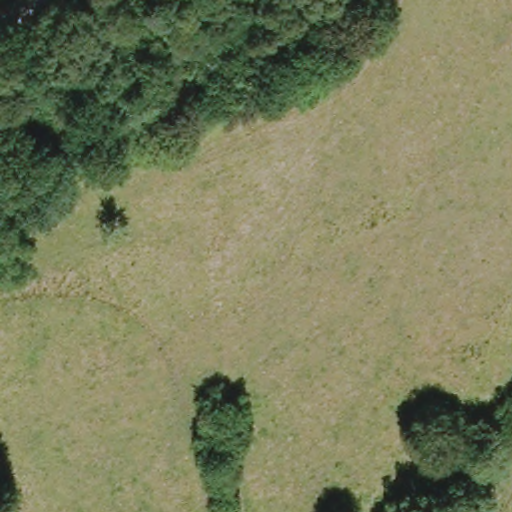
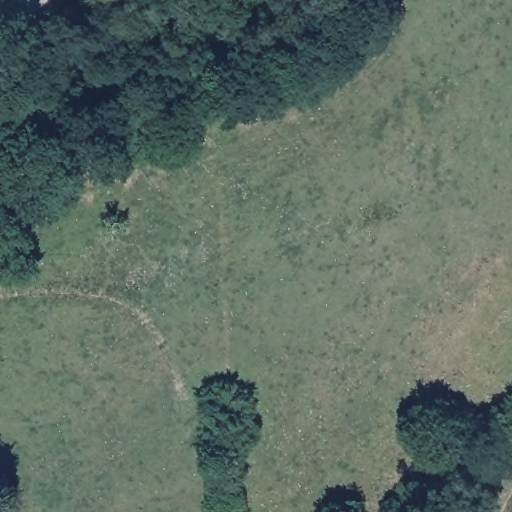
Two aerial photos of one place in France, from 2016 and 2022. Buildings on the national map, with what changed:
unchanged [(44,194),(27,197),(22,166),(28,160),(37,161),(44,194)]

